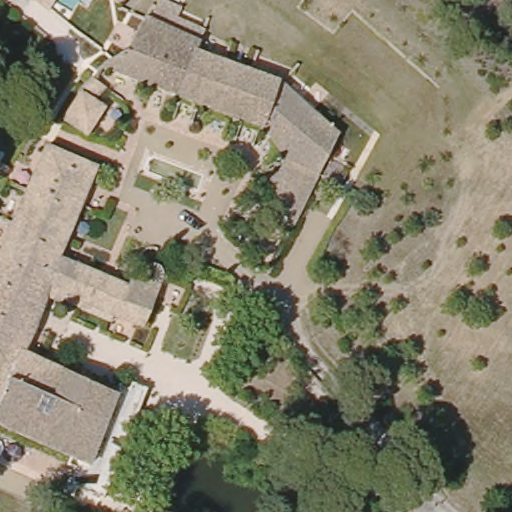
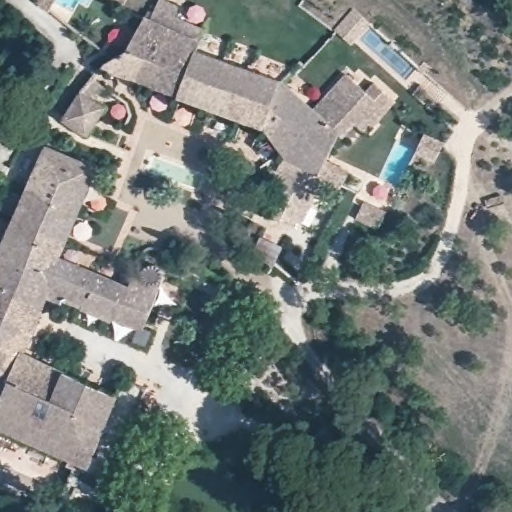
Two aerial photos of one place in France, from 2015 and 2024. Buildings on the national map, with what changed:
unchanged [(104,64),(111,60),(130,51),(150,19),(292,82),(346,136),(308,217),(292,210),(309,173),(293,164),(269,139),(175,95),(104,64)]
new [(365,90),(374,82),(396,101),(367,135),(356,126),(346,136),(315,105),(346,73),(365,90)]
unchanged [(105,102),(87,131),(64,116),(82,86),(105,102)]
unchanged [(100,159),(58,250),(125,282),(150,293),(155,280),(147,278),(142,271),(143,265),(149,260),(156,260),(164,264),(171,247),(176,249),(141,322),(52,283),(24,345),(127,392),(96,465),(73,455),(0,422),(0,240),(2,237),(47,135),(100,159)]
unchanged [(64,476),(73,455),(96,465),(127,392),(131,383),(140,386),(145,377),(156,382),(106,495),(75,482),(69,495),(58,489),(64,476)]
unchanged [(53,512),(50,512),(51,511),(53,512)]

